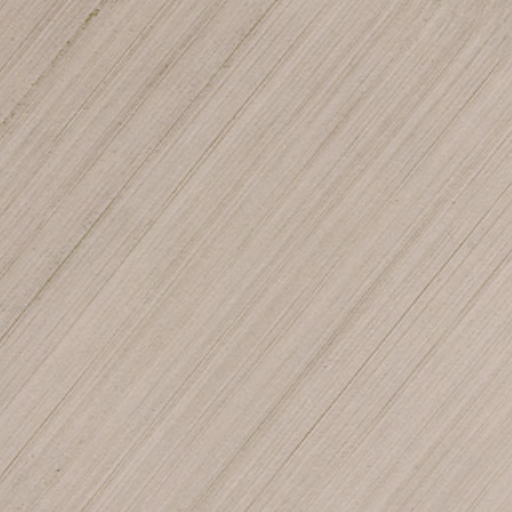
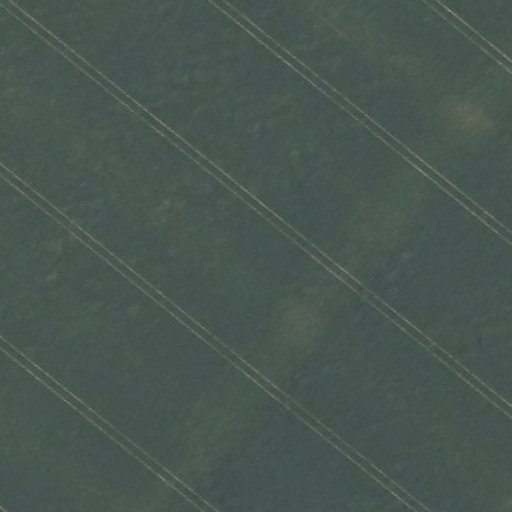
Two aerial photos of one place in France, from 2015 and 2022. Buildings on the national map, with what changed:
[]

